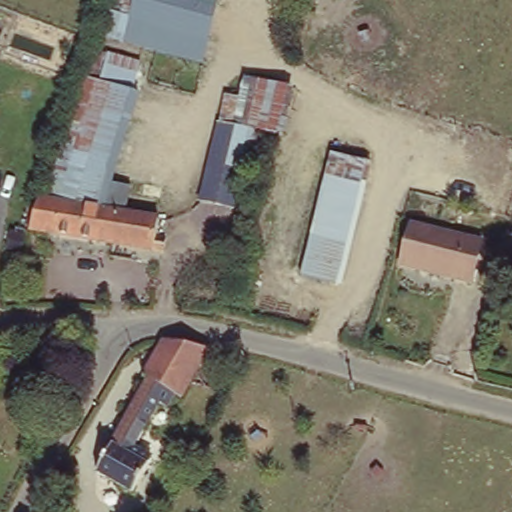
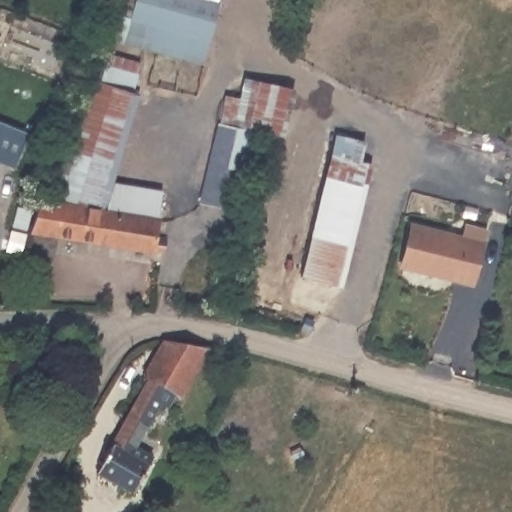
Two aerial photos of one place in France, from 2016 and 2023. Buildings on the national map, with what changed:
unchanged [(221,0),(197,58),(121,30),(133,0),(221,0)]
unchanged [(81,209),(60,205),(104,84),(111,53),(149,61),(140,93),(99,211),(81,209)]
unchanged [(239,212),(202,205),(218,121),(232,123),(243,73),(273,79),(239,212)]
new [(16,170),(0,164),(0,120),(26,132),(16,170)]
unchanged [(374,165),(345,287),(305,276),(332,154),(374,165)]
unchanged [(162,218),(161,235),(173,237),(170,251),(35,232),(41,202),(81,209),(113,213),(162,218)]
unchanged [(483,250),(472,290),(402,272),(412,231),(483,250)]
unchanged [(171,391),(166,389),(155,406),(151,403),(127,445),(149,456),(132,485),(96,464),(142,377),(136,372),(156,330),(199,341),(171,391)]

